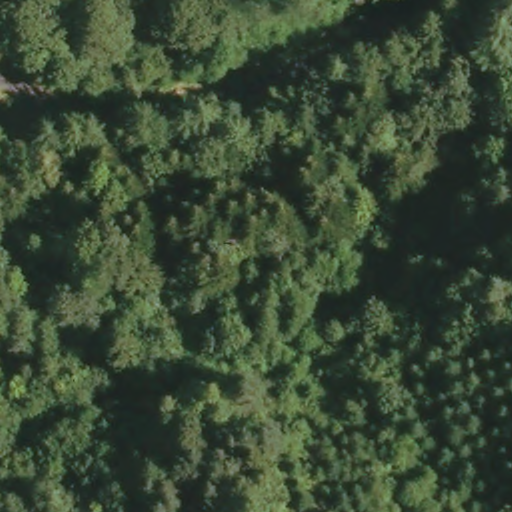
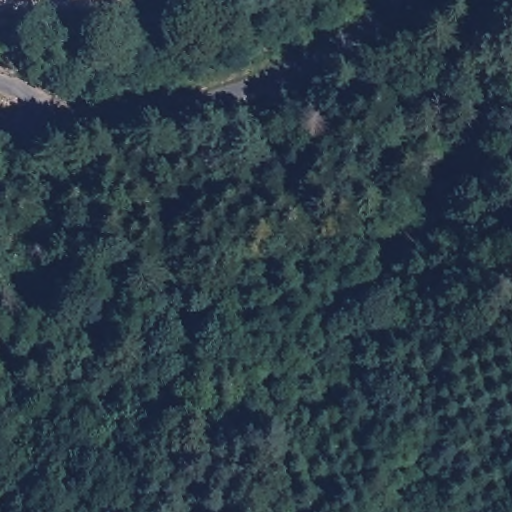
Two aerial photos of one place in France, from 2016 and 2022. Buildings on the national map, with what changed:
[]

